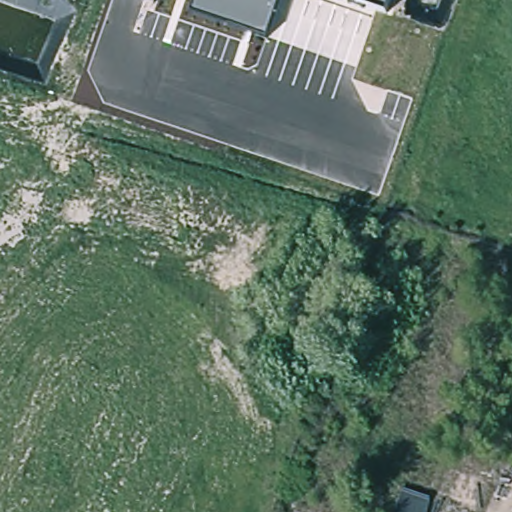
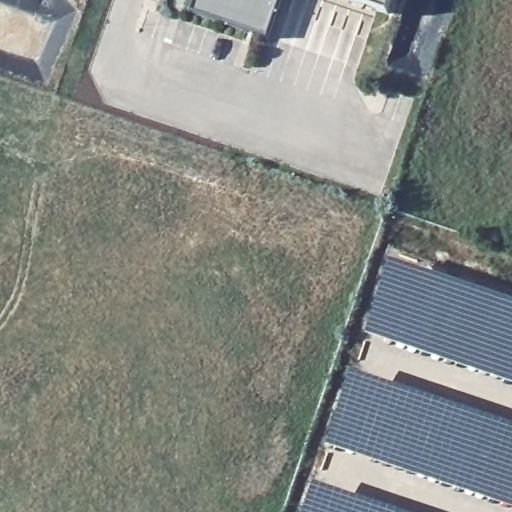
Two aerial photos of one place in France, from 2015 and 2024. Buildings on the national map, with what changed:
unchanged [(267,34),(192,11),(195,0),(277,0),(267,34)]
unchanged [(389,11),(354,0),(392,0),(389,11)]
new [(512,302),(512,382),(365,332),(390,260),(512,302)]
new [(326,443),(351,371),(512,425),(512,507),(326,443)]
new [(303,512),(314,483),(398,512),(303,512)]

